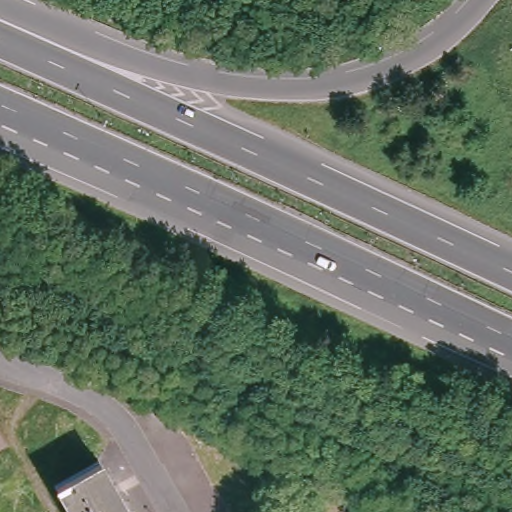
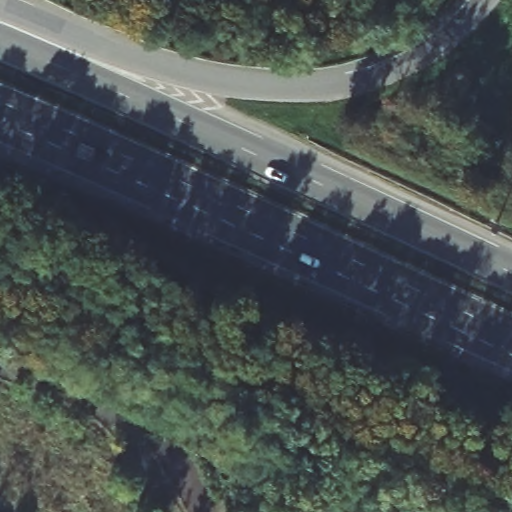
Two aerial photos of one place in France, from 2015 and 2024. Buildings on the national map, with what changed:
demolished [(80,472),(98,461),(113,487),(120,498),(123,505),(128,512),(69,512),(55,486),(80,472)]

